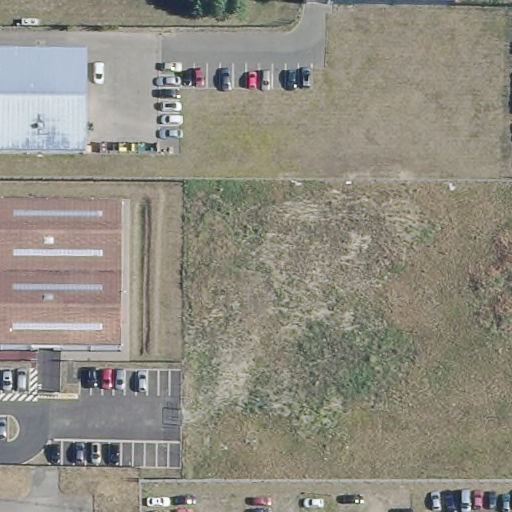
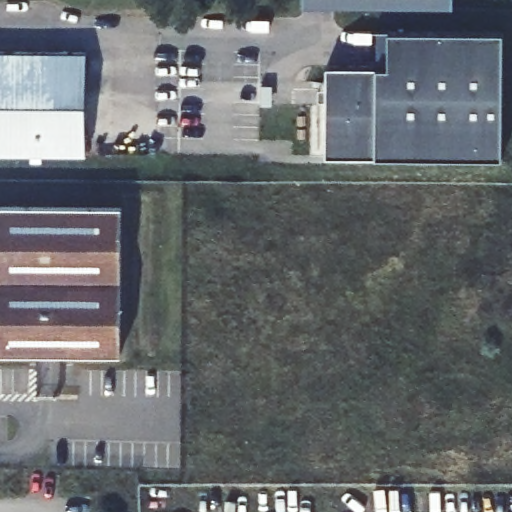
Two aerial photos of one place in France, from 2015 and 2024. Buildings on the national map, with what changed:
unchanged [(303,6),(303,0),(453,0),(453,9),(303,6)]
new [(376,156),(326,156),(327,68),(376,67),(389,67),(389,33),(503,33),(501,157),(376,156)]
unchanged [(85,52),(87,153),(0,153),(0,51),(85,52)]
unchanged [(117,358),(0,356),(0,210),(121,213),(117,358)]

